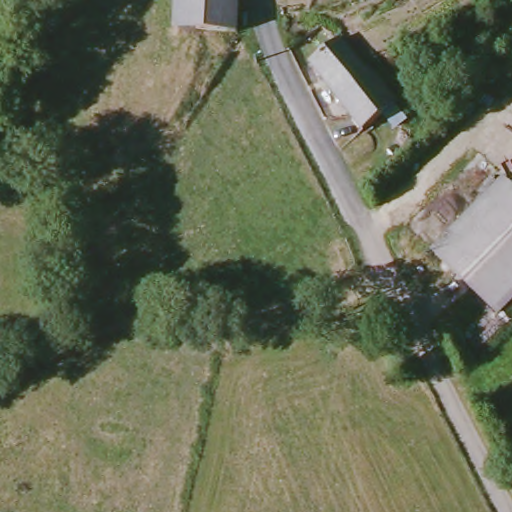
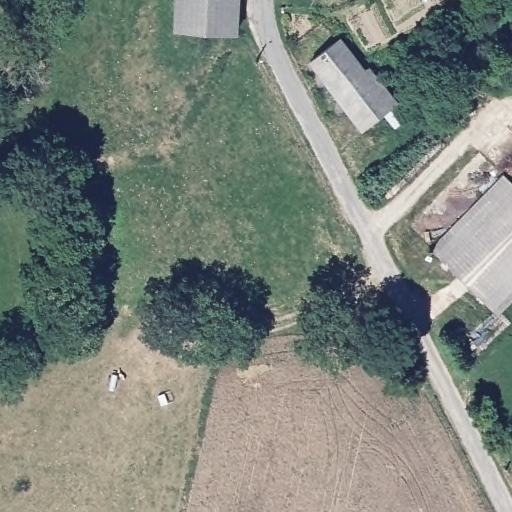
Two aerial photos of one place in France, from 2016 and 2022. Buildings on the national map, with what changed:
unchanged [(234,29),(173,27),(174,0),(235,0),(234,29)]
unchanged [(360,74),(369,68),(394,102),(358,130),(309,61),(338,40),(360,74)]
unchanged [(431,251),(502,176),(511,185),(512,184),(512,300),(497,316),(431,251)]

